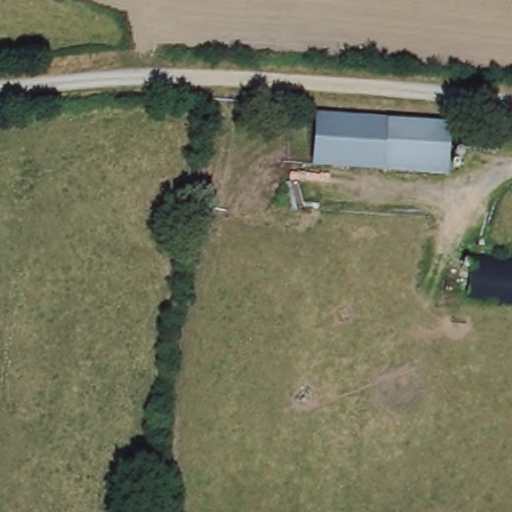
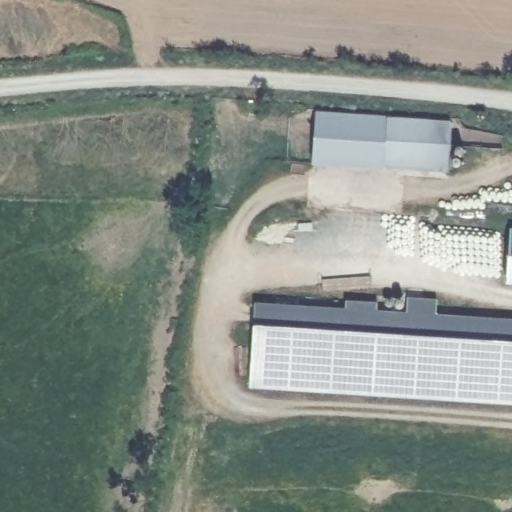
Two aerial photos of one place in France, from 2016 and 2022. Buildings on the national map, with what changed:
unchanged [(311,118),(449,126),(448,146),(461,146),(458,171),(386,166),(384,171),(309,167),(311,118)]
new [(507,283),(510,228),(512,229),(512,284),(507,283)]
demolished [(464,294),(469,257),(512,263),(512,301),(464,294)]
new [(250,310),(512,321),(512,403),(247,392),(250,310)]

